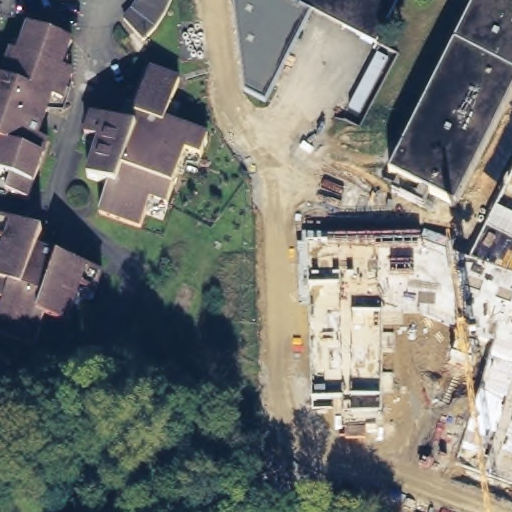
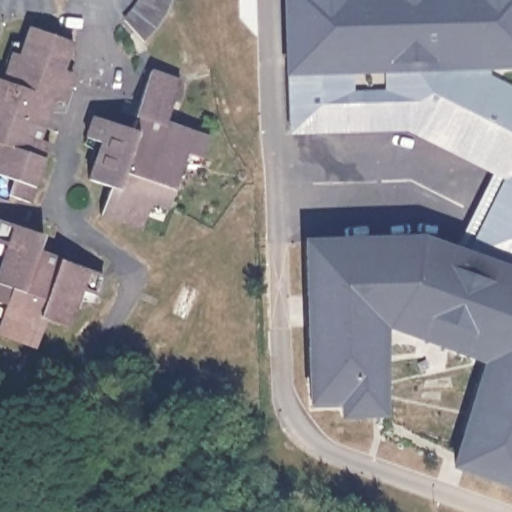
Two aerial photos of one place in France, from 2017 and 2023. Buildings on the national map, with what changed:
unchanged [(136,2),(137,0),(169,0),(162,14),(150,31),(144,37),(125,17),(136,2)]
demolished [(315,7),(270,100),(248,89),(236,0),(319,0),(315,7)]
new [(485,69),(384,72),(353,73),(285,75),(282,0),(512,0),(512,69),(485,69)]
demolished [(380,39),(346,22),(350,13),(323,0),(398,0),(380,39)]
demolished [(435,116),(492,142),(461,204),(394,169),(478,0),(488,0),(435,116)]
demolished [(492,142),(435,116),(488,0),(512,0),(512,103),(492,142)]
unchanged [(9,191),(14,179),(0,174),(0,76),(2,76),(14,46),(21,49),(30,26),(70,42),(61,66),(74,70),(63,99),(55,96),(37,139),(49,143),(27,198),(9,191)]
unchanged [(149,67),(180,78),(163,122),(207,138),(201,153),(189,149),(170,200),(152,194),(142,221),(102,207),(112,181),(89,172),(102,137),(87,131),(96,107),(129,121),(149,67)]
new [(455,246),(492,173),(405,130),(289,134),(285,75),(353,73),(354,89),(383,88),(384,72),(485,69),(512,84),(512,266),(455,246)]
unchanged [(90,287),(78,283),(64,319),(42,311),(30,341),(0,329),(0,299),(0,298),(0,247),(2,241),(0,241),(0,216),(39,230),(34,246),(97,270),(90,287)]
new [(450,466),(482,362),(385,327),(385,416),(340,418),(338,402),(309,403),(303,238),(421,233),(455,246),(512,266),(512,489),(450,466)]
demolished [(314,351),(343,379),(312,410),(284,381),(314,351)]
demolished [(422,427),(375,436),(371,407),(420,400),(422,427)]

